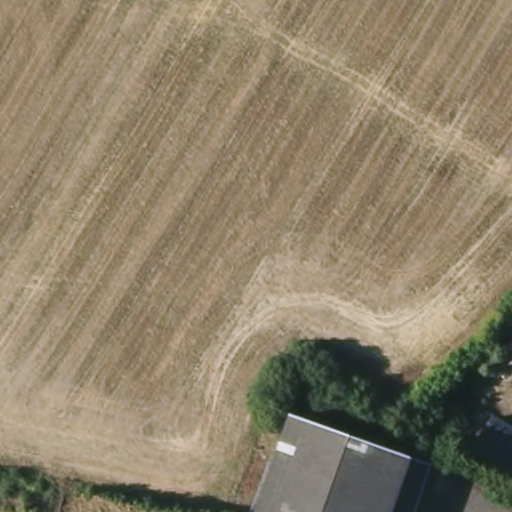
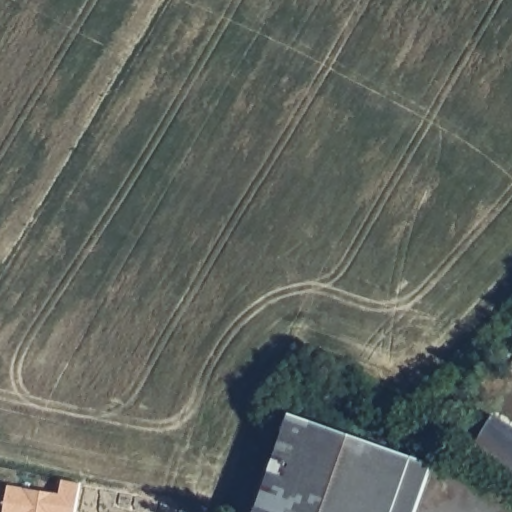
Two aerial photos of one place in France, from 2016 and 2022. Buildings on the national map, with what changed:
unchanged [(297,415),(436,464),(419,512),(263,512),(297,415)]
new [(7,486),(59,494),(62,479),(80,483),(75,512),(2,512),(7,486)]

